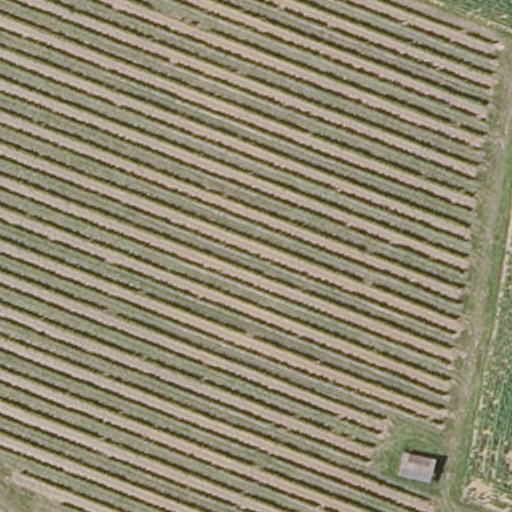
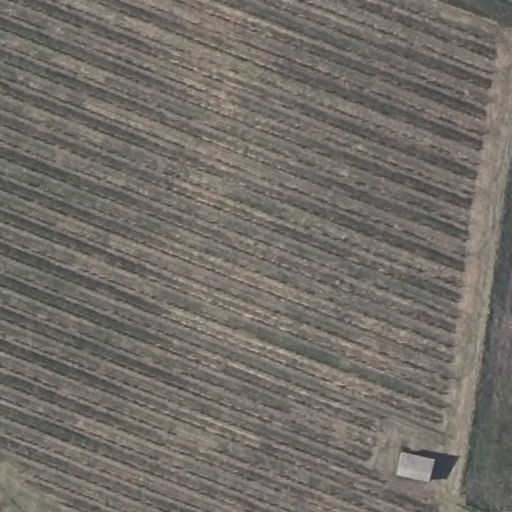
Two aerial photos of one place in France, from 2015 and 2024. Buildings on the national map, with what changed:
unchanged [(430,480),(398,471),(403,450),(435,459),(430,480)]

